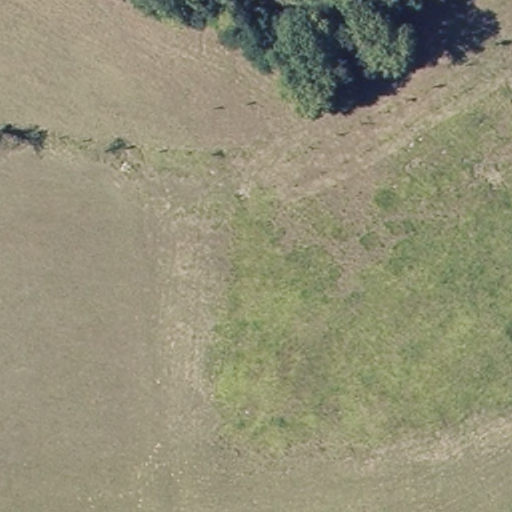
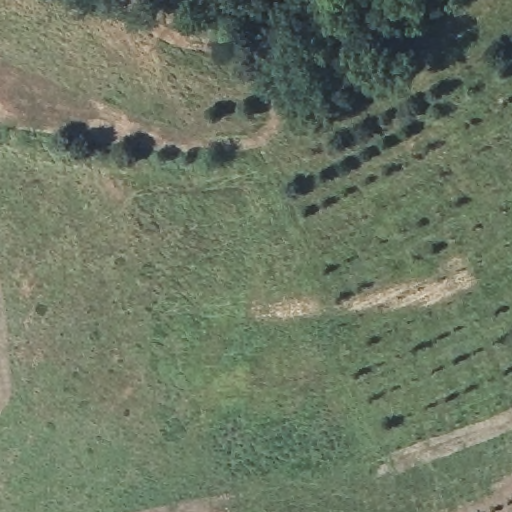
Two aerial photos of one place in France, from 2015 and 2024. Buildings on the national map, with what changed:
[]

